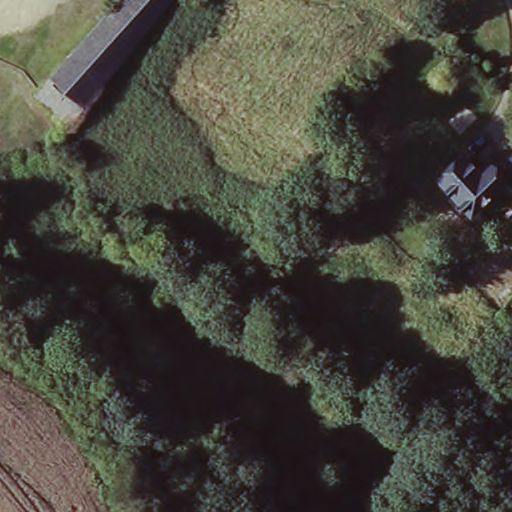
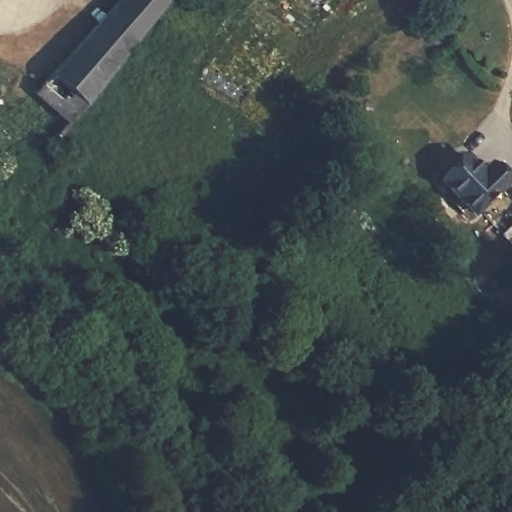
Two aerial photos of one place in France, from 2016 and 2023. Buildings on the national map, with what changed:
unchanged [(30,92),(113,0),(161,0),(63,121),(30,92)]
unchanged [(465,149),(477,162),(485,156),(506,180),(477,207),(469,213),(436,175),(465,149)]
unchanged [(512,221),(512,253),(496,235),(512,221)]

